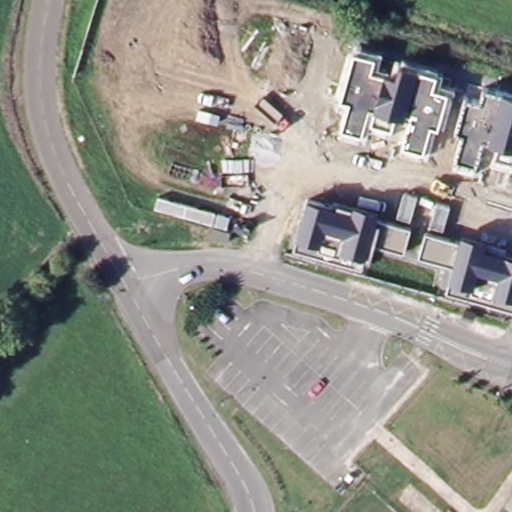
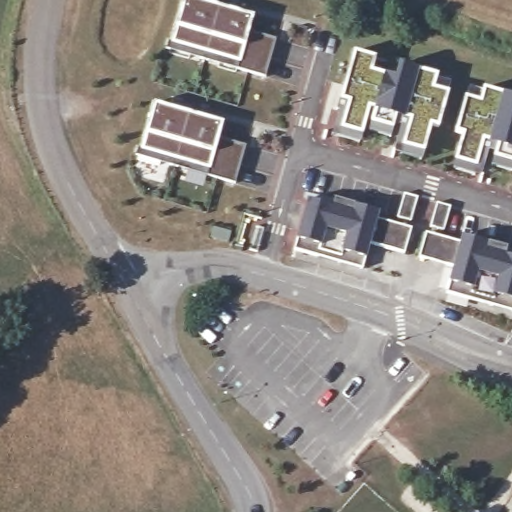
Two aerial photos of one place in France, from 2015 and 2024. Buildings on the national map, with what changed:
new [(185,0),(189,0),(254,17),(250,32),(277,39),(267,76),(239,69),(168,50),(170,44),(173,45),(185,0)]
unchanged [(385,48),(381,63),(388,65),(392,53),(444,67),(441,80),(450,82),(439,128),(435,127),(427,152),(403,144),(410,120),(395,115),(390,130),(370,124),(373,108),(369,106),(362,135),(340,129),(347,100),(337,97),(353,39),(385,48)]
unchanged [(485,83),(512,91),(512,165),(492,159),(495,144),(482,140),(475,169),(454,163),(462,133),(456,130),(467,93),(481,97),(485,83)]
new [(142,152),(153,106),(223,123),(219,139),(246,146),(236,185),(208,177),(136,159),(138,151),(142,152)]
unchanged [(512,179),(512,184),(510,183),(512,179)]
unchanged [(383,213),(381,215),(394,218),(403,188),(416,192),(407,222),(411,224),(404,251),(375,243),(370,259),(364,257),(362,266),(291,245),(307,192),(383,213)]
unchanged [(441,231),(460,237),(461,234),(512,248),(512,306),(447,288),(453,262),(420,253),(427,229),(429,230),(438,198),(450,202),(441,231)]
new [(212,231),(230,236),(227,246),(209,241),(212,231)]
new [(429,449),(446,430),(491,470),(474,489),(429,449)]

